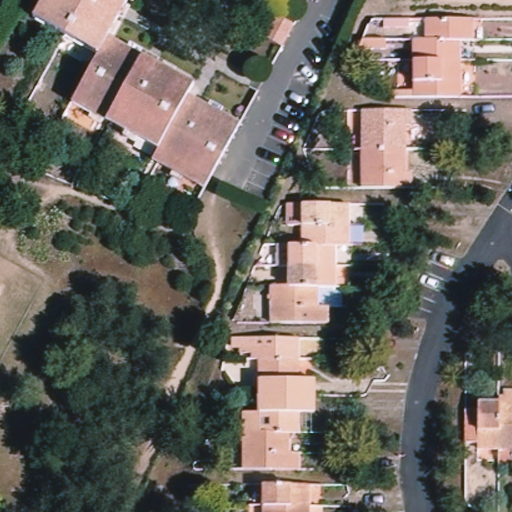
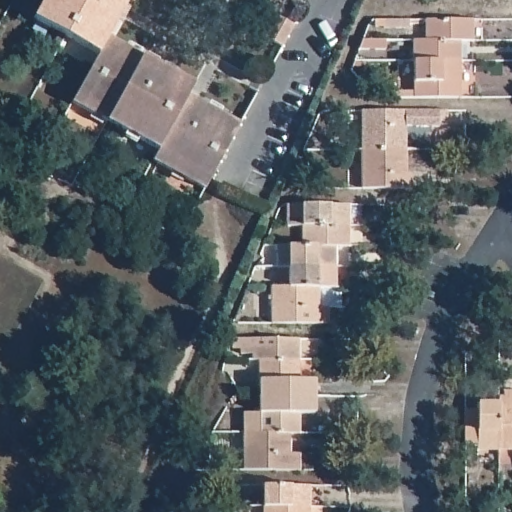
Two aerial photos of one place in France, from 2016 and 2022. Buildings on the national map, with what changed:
unchanged [(239,124),(236,130),(217,167),(209,182),(205,191),(152,163),(158,152),(70,106),(95,57),(29,22),(41,0),(125,0),(104,40),(193,86),(186,97),(239,124)]
unchanged [(288,49),(271,40),(283,17),(300,26),(288,49)]
unchanged [(452,101),(447,101),(446,101),(416,102),(411,102),(410,85),(410,65),(411,45),(423,44),(423,24),(443,23),(445,23),(469,23),(469,44),(457,44),(457,64),(458,101),(452,101)]
unchanged [(408,129),(402,130),(402,153),(359,154),(359,114),(361,114),(386,114),(390,114),(407,114),(408,129)]
unchanged [(402,177),(408,176),(408,192),(407,192),(381,193),(360,193),(359,154),(402,153),(402,177)]
unchanged [(277,327),(268,327),(268,291),(286,290),(286,270),(286,250),(299,250),(299,229),(299,209),(310,208),(314,208),(328,208),(334,208),(345,208),(345,228),(345,250),(332,250),(332,269),(332,290),(314,290),(314,311),(324,311),(324,327),(320,327),(277,327)]
unchanged [(311,383),(311,399),(287,400),(255,400),(255,362),(248,362),(248,342),(252,342),(296,341),(296,362),(295,383),(311,383)]
unchanged [(496,406),(501,406),(501,393),(512,393),(512,453),(496,453),(496,406)]
unchanged [(311,416),(296,415),(296,436),(286,436),(255,436),(255,400),(287,400),(311,399),(311,416)]
unchanged [(496,453),(476,453),(475,446),(463,447),(463,412),(475,412),(476,406),(496,406),(496,453)]
unchanged [(286,457),(296,457),(296,473),(290,473),(240,473),(239,473),(239,436),(255,436),(286,436),(286,457)]
unchanged [(262,509),(262,488),(307,488),(307,509),(307,512),(262,512),(262,509)]

